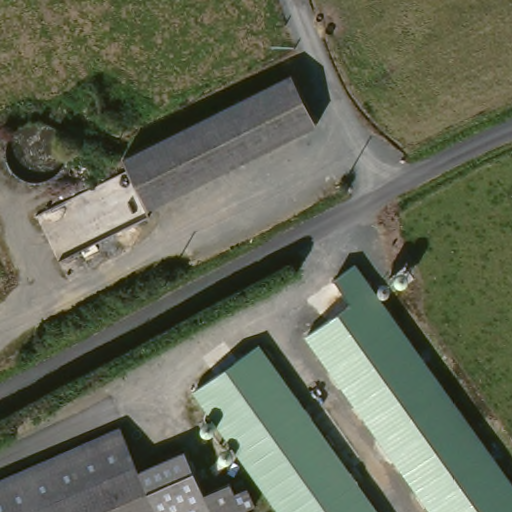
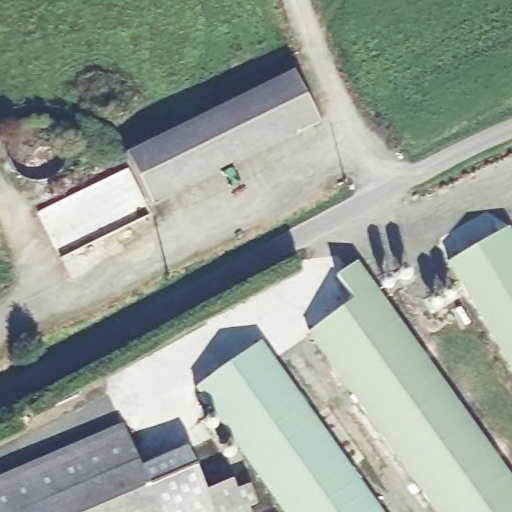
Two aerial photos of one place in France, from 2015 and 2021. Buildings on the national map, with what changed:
unchanged [(150,205),(126,157),(293,73),(318,123),(150,205)]
new [(508,229),(512,235),(512,378),(446,266),(508,229)]
demolished [(0,296),(0,255),(15,290),(0,296)]
unchanged [(355,267),(512,483),(512,512),(428,512),(303,337),(346,305),(331,284),(355,267)]
unchanged [(261,341),(384,512),(279,512),(193,390),(261,341)]
unchanged [(0,483),(119,431),(138,475),(154,512),(0,512),(0,483)]
unchanged [(184,454),(207,512),(154,512),(138,475),(184,454)]

